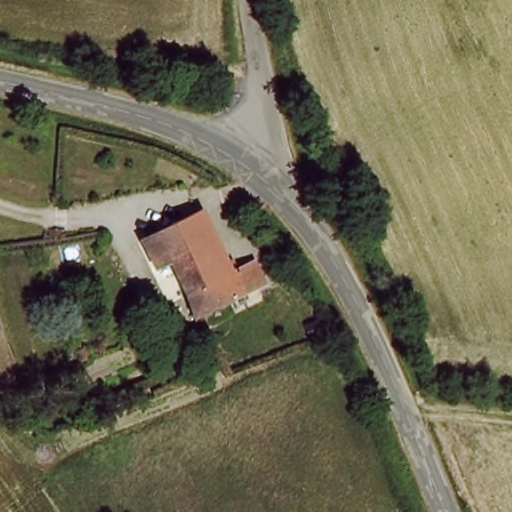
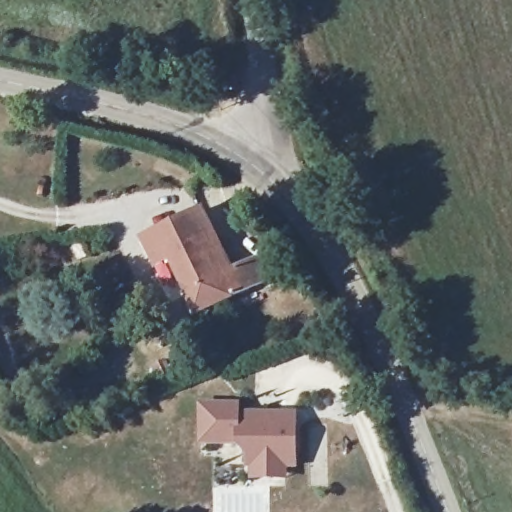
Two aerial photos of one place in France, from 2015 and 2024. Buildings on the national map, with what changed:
unchanged [(198,215),(205,212),(230,263),(254,255),(267,280),(226,299),(190,219),(198,215)]
unchanged [(226,299),(210,306),(196,313),(172,259),(153,265),(144,239),(190,219),(226,299)]
new [(198,404),(242,404),(242,412),(297,413),(297,469),(288,469),(287,482),(250,480),(251,470),(245,469),(245,454),(237,447),(198,447),(198,404)]

